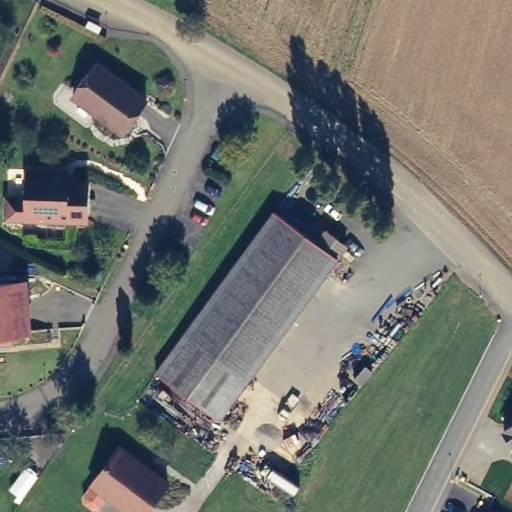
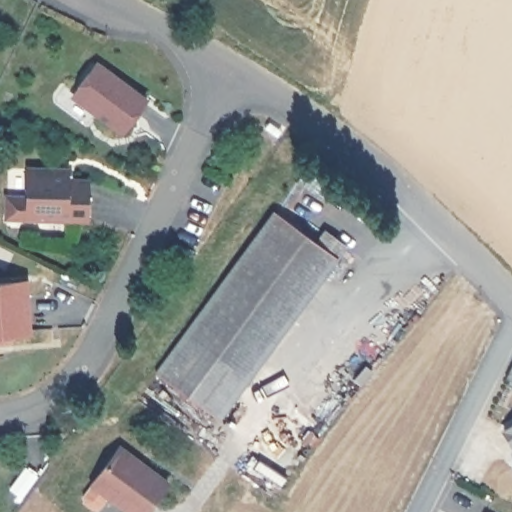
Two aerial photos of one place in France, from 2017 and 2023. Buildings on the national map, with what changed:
unchanged [(142,90),(118,122),(94,105),(95,103),(69,84),(92,52),(142,90)]
unchanged [(0,223),(0,203),(17,203),(18,174),(55,175),(58,175),(58,185),(78,185),(77,224),(0,223)]
unchanged [(270,210),(312,242),(321,230),(342,245),(215,419),(151,372),(270,210)]
unchanged [(24,331),(0,333),(0,283),(20,281),(24,331)]
unchanged [(503,430),(512,424),(512,446),(503,430)]
unchanged [(510,451),(512,446),(512,454),(510,451)]
unchanged [(142,512),(127,512),(88,483),(115,447),(163,483),(142,512)]

